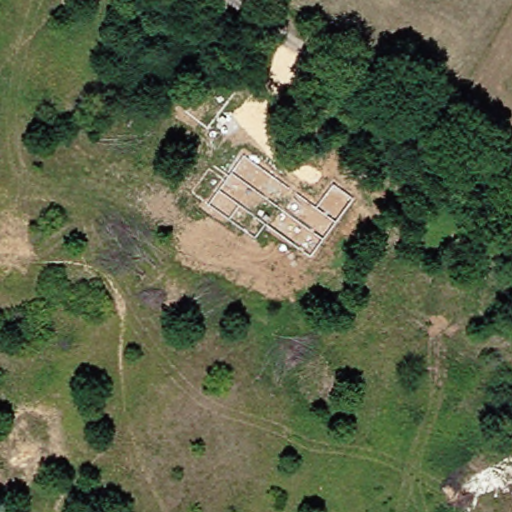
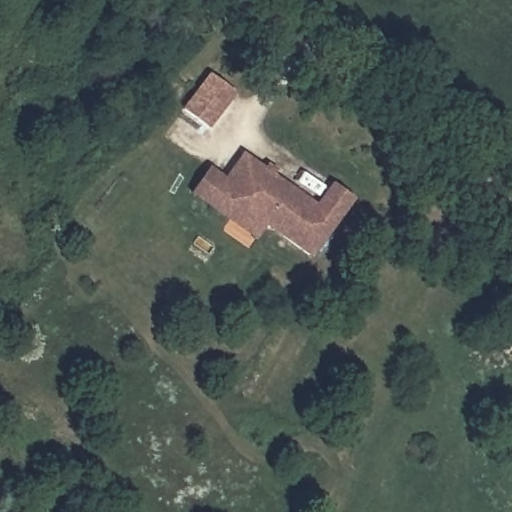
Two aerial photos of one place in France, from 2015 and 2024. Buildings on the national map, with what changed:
new [(183,110),(210,74),(235,92),(210,130),(183,110)]
new [(257,241),(190,196),(210,167),(226,177),(243,150),(316,204),(332,183),(355,199),(312,258),(266,229),(257,241)]

